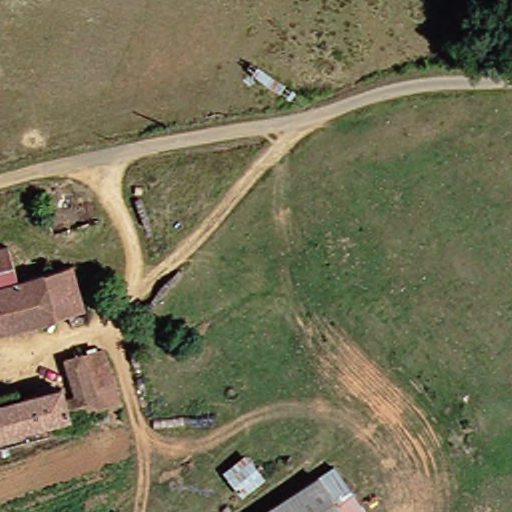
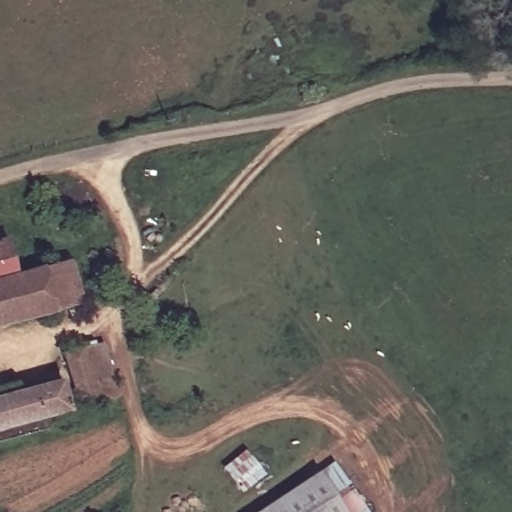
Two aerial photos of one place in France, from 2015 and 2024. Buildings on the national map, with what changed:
unchanged [(16,245),(24,278),(68,268),(84,323),(71,326),(67,314),(0,328),(0,248),(16,245)]
unchanged [(77,354),(95,349),(112,406),(94,411),(77,354)]
unchanged [(12,380),(17,395),(52,385),(57,399),(71,397),(60,359),(77,354),(94,411),(71,416),(60,419),(45,422),(47,434),(0,439),(0,383),(12,380)]
unchanged [(246,449),(266,477),(240,497),(221,468),(246,449)]
unchanged [(324,476),(344,512),(257,512),(324,476)]

